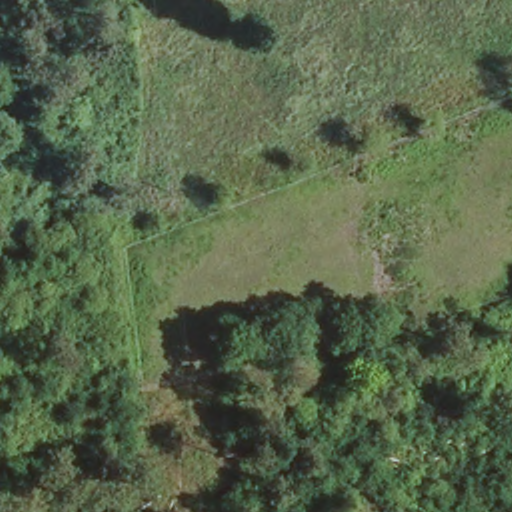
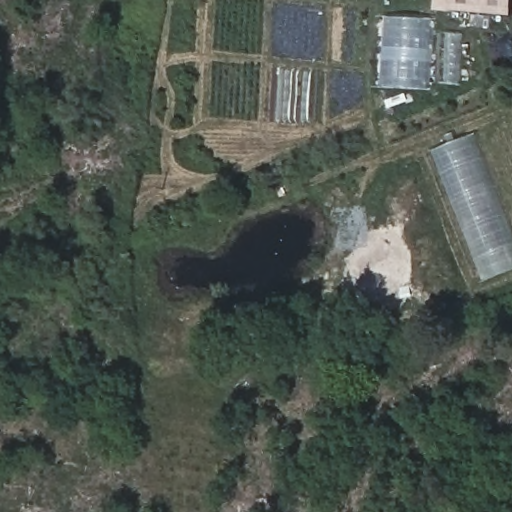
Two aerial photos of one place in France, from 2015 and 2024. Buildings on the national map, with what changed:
new [(512,0),(512,17),(452,12),(454,0),(512,0)]
new [(433,92),(382,88),(387,17),(438,20),(433,92)]
new [(512,238),(512,270),(481,281),(433,152),(474,135),(512,238)]

